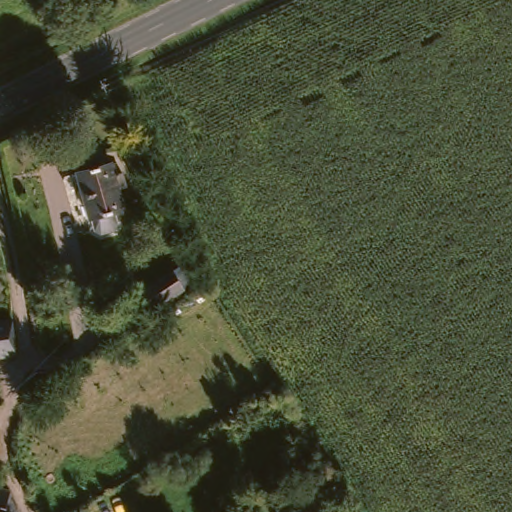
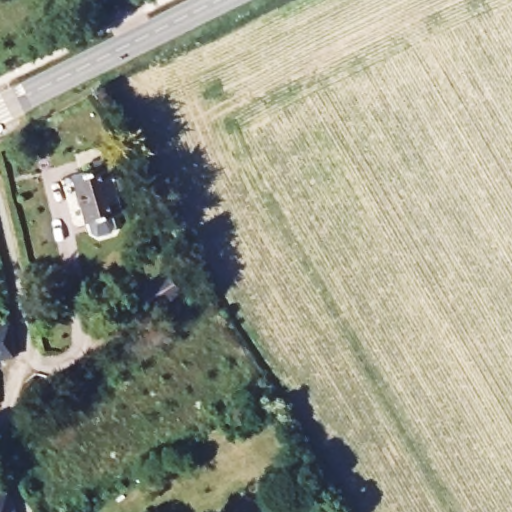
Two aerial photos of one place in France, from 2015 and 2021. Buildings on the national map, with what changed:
unchanged [(108,164),(121,210),(85,222),(72,175),(108,164)]
unchanged [(174,272),(185,292),(145,316),(134,296),(174,272)]
unchanged [(0,320),(11,320),(15,354),(0,355),(0,320)]
unchanged [(6,495),(11,512),(0,512),(0,494),(1,494),(6,495)]

